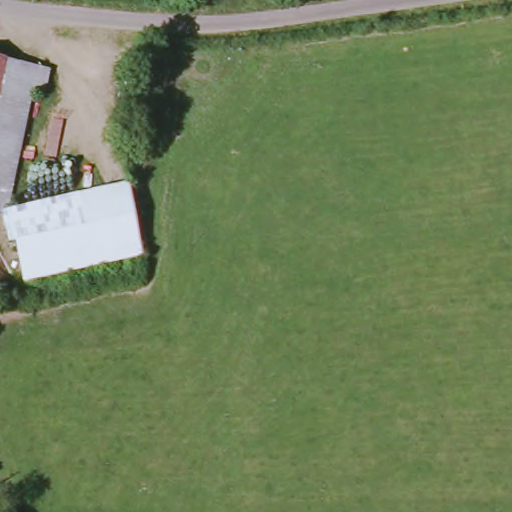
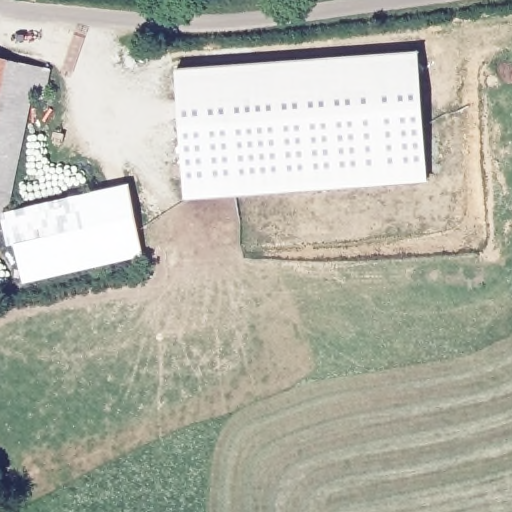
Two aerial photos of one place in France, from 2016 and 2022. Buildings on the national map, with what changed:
new [(184,200),(174,70),(416,50),(428,182),(184,200)]
unchanged [(48,79),(37,77),(6,212),(0,211),(0,54),(50,65),(48,79)]
unchanged [(134,219),(139,248),(30,277),(16,209),(129,179),(134,219)]

